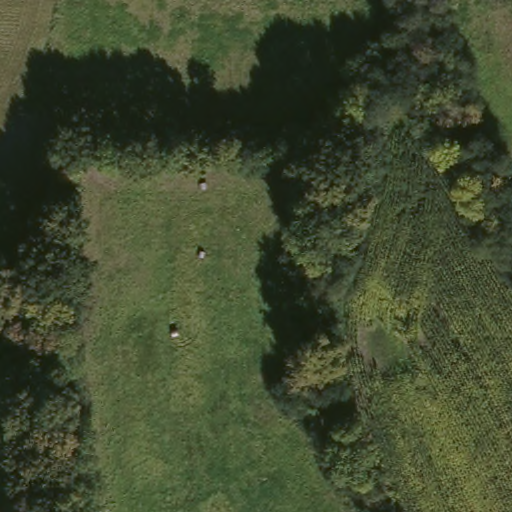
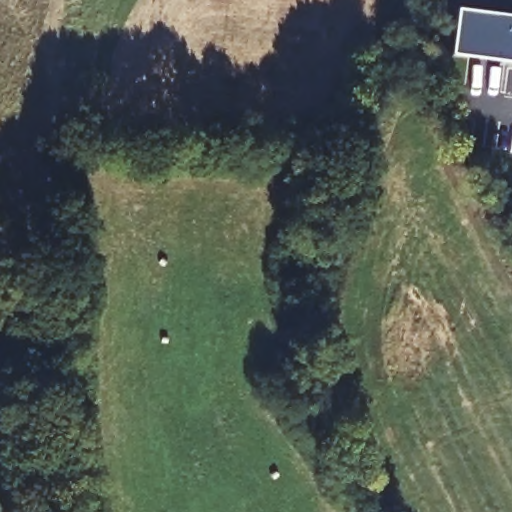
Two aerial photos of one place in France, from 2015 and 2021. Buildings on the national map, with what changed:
new [(512,16),(512,63),(452,56),(458,9),(512,16)]

